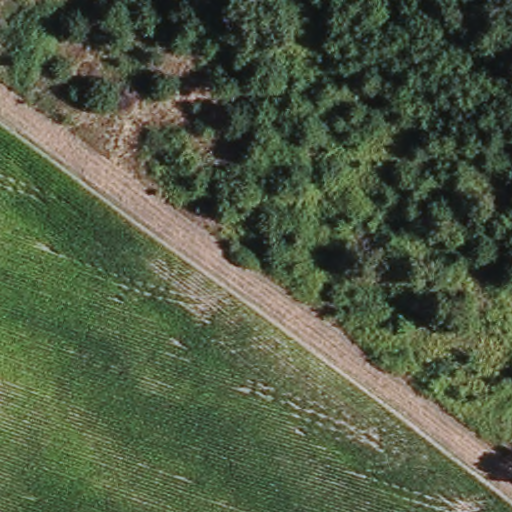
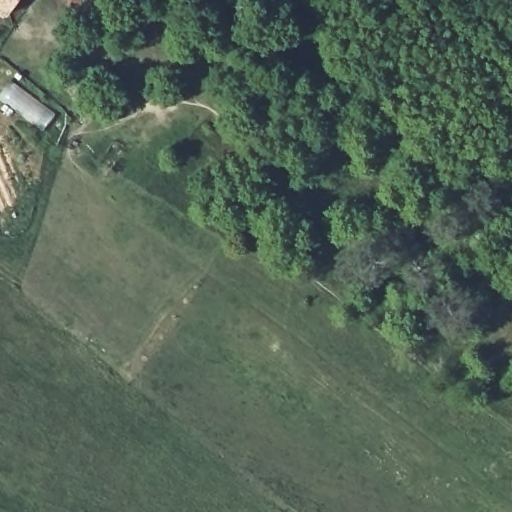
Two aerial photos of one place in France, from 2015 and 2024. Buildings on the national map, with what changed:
new [(6,18),(0,13),(0,0),(20,0),(6,18)]

